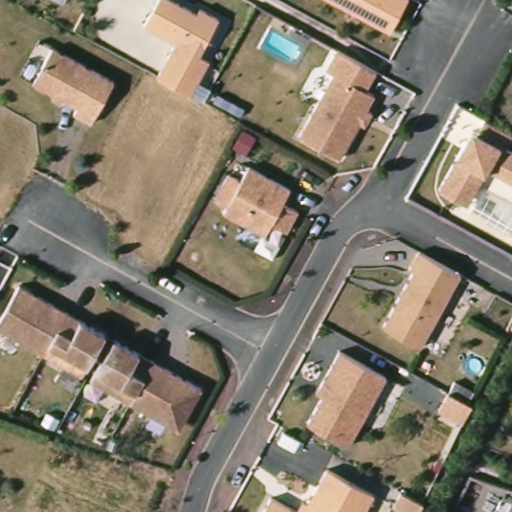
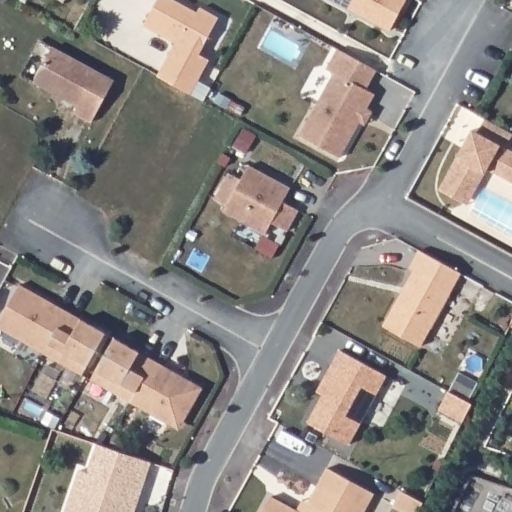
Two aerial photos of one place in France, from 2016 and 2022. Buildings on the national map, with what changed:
unchanged [(160,75),(178,42),(146,25),(160,0),(176,0),(200,12),(202,7),(221,17),(201,54),(211,59),(192,93),(160,75)]
unchanged [(391,26),(341,0),(405,0),(391,26)]
unchanged [(54,44),(115,79),(92,120),(74,110),(78,104),(34,79),(54,44)]
unchanged [(369,124),(363,121),(344,157),(302,135),(337,72),(329,68),(340,48),(379,69),(370,89),(378,94),(371,108),(376,111),(369,124)]
unchanged [(460,199),(441,188),(467,139),(473,127),(480,131),(487,117),(493,120),(512,130),(512,136),(507,146),(512,149),(512,180),(488,167),(468,204),(460,199)]
unchanged [(229,204),(215,195),(229,169),(244,177),(252,164),(292,185),(283,200),(301,209),(285,236),(268,226),(266,231),(227,209),(229,204)]
unchanged [(420,346),(383,325),(415,270),(410,267),(420,250),(461,273),(420,346)]
unchanged [(3,314),(22,280),(109,330),(85,371),(4,325),(3,314)]
unchanged [(509,330),(512,324),(512,331),(509,330)]
unchanged [(117,335),(204,385),(186,418),(175,422),(94,376),(117,335)]
unchanged [(386,373),(347,442),(307,420),(322,392),(316,389),(319,383),(339,347),(386,373)]
unchanged [(472,401),(463,419),(442,407),(450,390),(472,401)]
new [(93,512),(66,512),(79,469),(88,473),(97,443),(152,461),(136,512),(102,512),(94,510),(93,512)]
unchanged [(296,505),(302,495),(307,497),(326,462),(372,487),(360,512),(258,512),(270,491),(296,505)]

